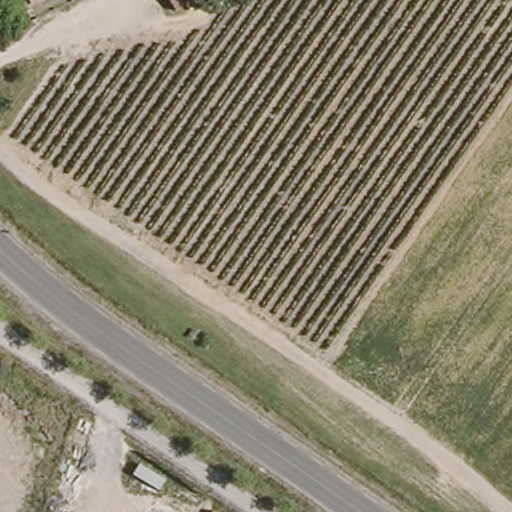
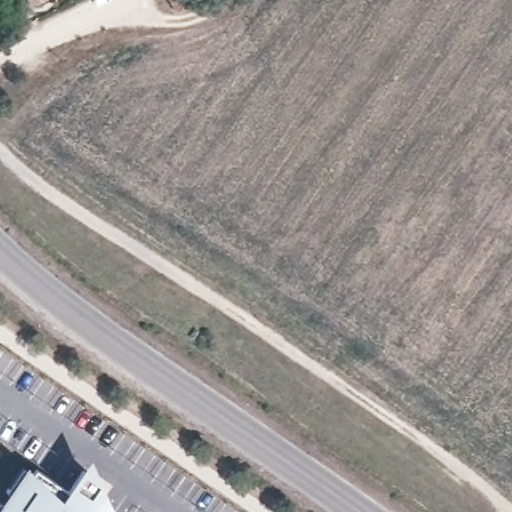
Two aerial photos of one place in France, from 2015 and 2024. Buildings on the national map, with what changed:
unchanged [(174,14),(165,0),(197,0),(174,14)]
new [(91,456),(115,512),(0,512),(0,502),(26,464),(67,491),(91,456)]

